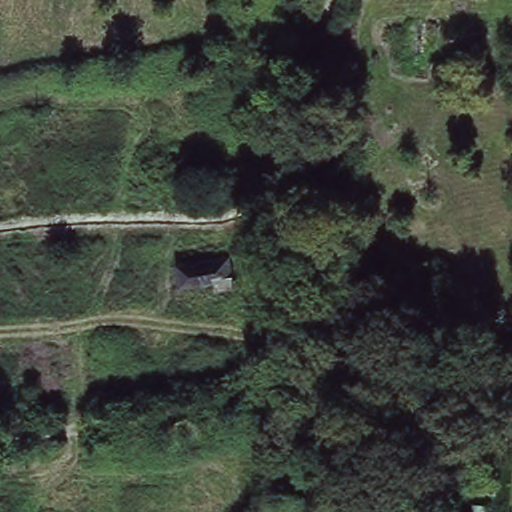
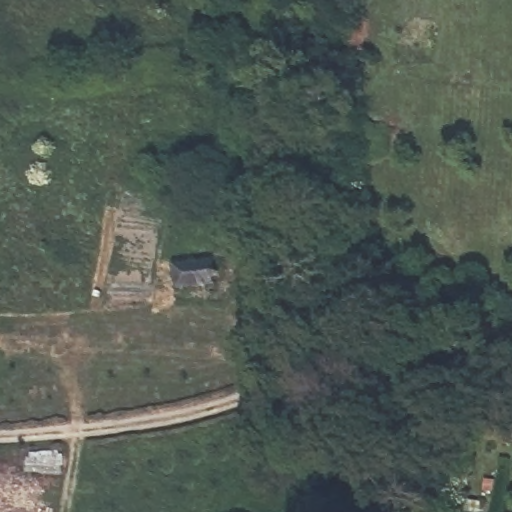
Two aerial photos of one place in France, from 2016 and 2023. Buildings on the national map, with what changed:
unchanged [(177,292),(173,261),(232,256),(235,290),(218,292),(217,283),(201,287),(177,292)]

